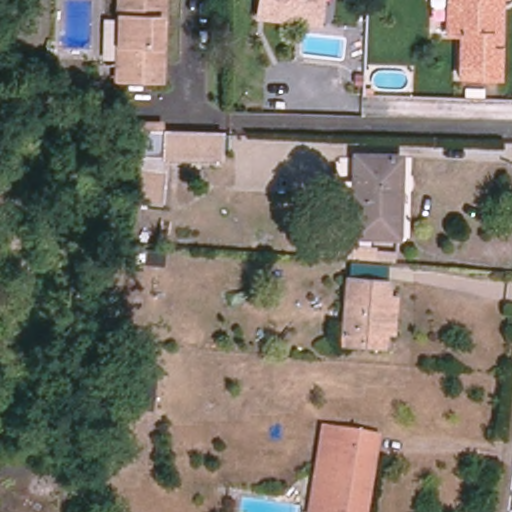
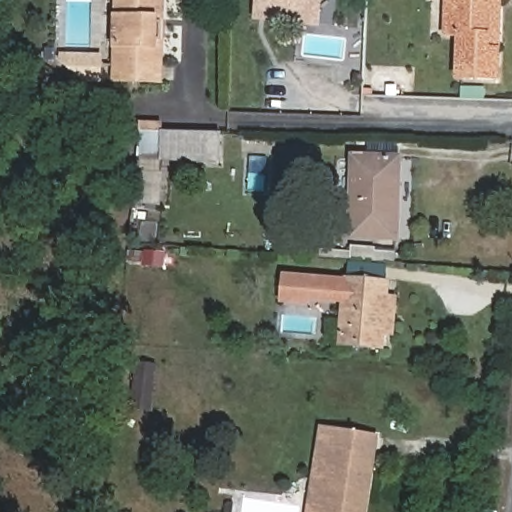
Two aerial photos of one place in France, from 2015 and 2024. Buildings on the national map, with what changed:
unchanged [(116,80),(116,55),(118,0),(164,0),(163,19),(149,19),(149,39),(163,39),(162,82),(116,80)]
unchanged [(289,11),(288,22),(254,17),(256,0),(317,0),(315,15),(289,11)]
unchanged [(458,74),(459,32),(446,32),(447,0),(502,0),(500,45),(499,76),(458,74)]
unchanged [(217,162),(140,160),(141,131),(218,133),(217,162)]
unchanged [(399,240),(352,239),(354,157),(401,158),(399,240)]
new [(285,272),(353,276),(351,304),(312,301),(311,307),(282,305),(285,272)]
unchanged [(351,304),(353,276),(392,280),(387,342),(348,338),(351,304)]
unchanged [(133,398),(138,362),(157,366),(152,401),(133,398)]
unchanged [(364,512),(317,512),(330,430),(375,437),(364,512)]

